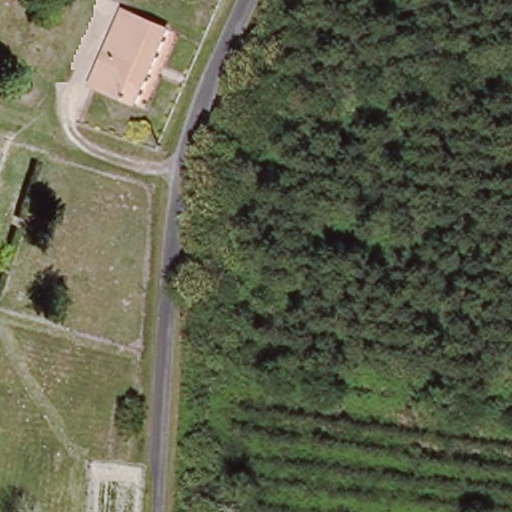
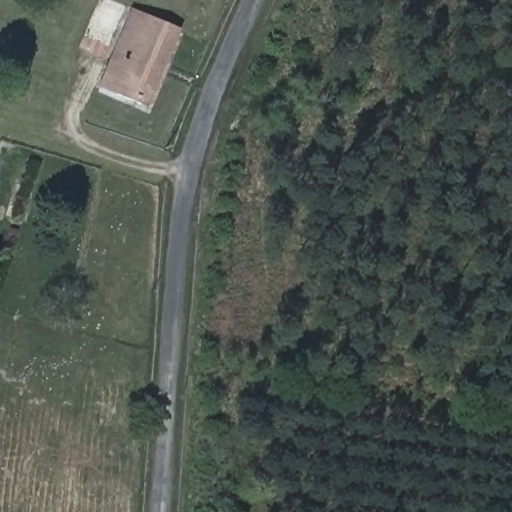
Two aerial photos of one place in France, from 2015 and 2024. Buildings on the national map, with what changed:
unchanged [(133,1),(154,10),(149,23),(178,35),(147,108),(99,90),(133,1)]

